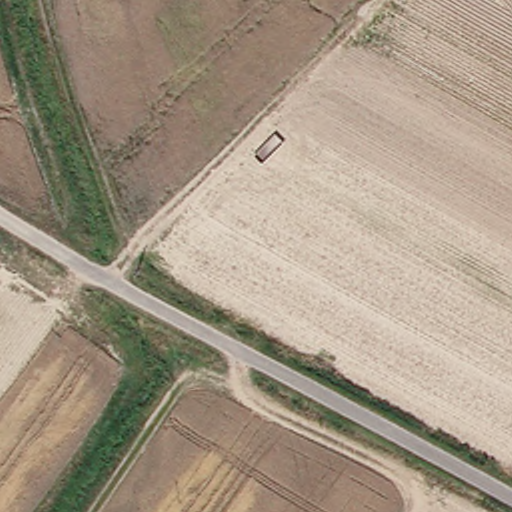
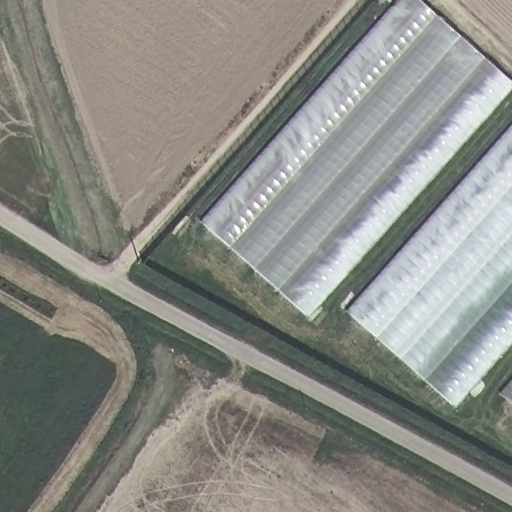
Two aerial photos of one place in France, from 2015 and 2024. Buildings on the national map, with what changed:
new [(205,227),(407,0),(418,0),(510,82),(302,314),(205,227)]
new [(349,314),(512,131),(512,336),(450,405),(349,314)]
new [(501,396),(512,383),(512,405),(501,396)]

